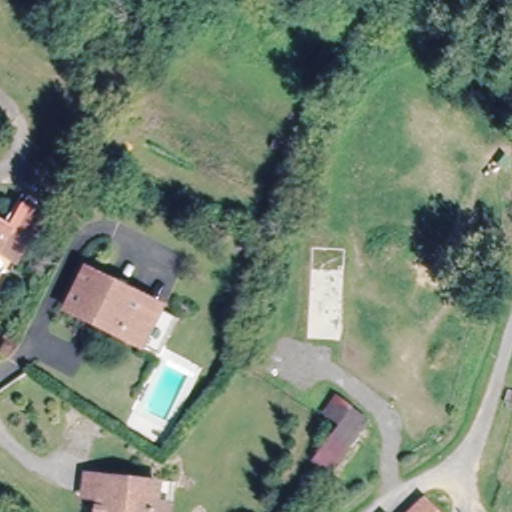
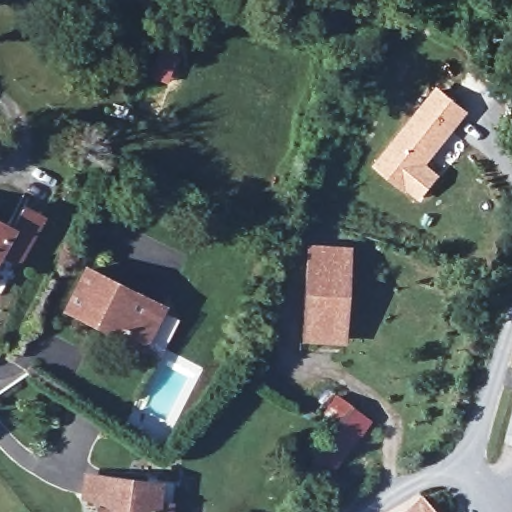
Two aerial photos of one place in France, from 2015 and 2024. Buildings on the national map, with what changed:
new [(441,89),(467,110),(424,162),(437,174),(421,194),(408,182),(406,185),(380,163),(441,89)]
unchanged [(12,226),(24,205),(41,215),(17,258),(0,249),(0,219),(12,226)]
new [(314,250),(346,252),(342,322),(309,320),(314,250)]
unchanged [(72,263),(148,299),(167,309),(149,345),(55,300),(72,263)]
unchanged [(375,422),(335,471),(317,453),(343,421),(326,410),(333,402),(340,392),(375,422)]
unchanged [(158,512),(101,512),(102,502),(87,500),(90,482),(161,494),(158,512)]
unchanged [(413,504),(421,512),(405,512),(413,504)]

